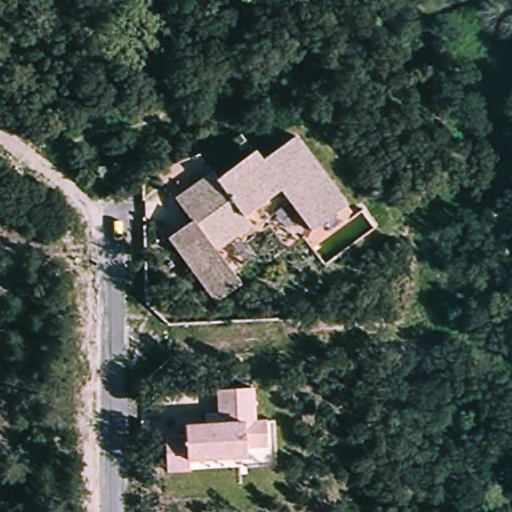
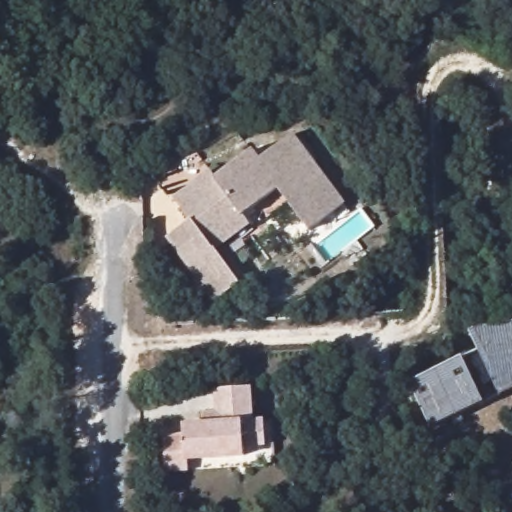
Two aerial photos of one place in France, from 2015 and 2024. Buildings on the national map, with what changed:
unchanged [(176,195),(216,170),(220,177),(259,152),(266,163),(302,140),(349,213),(311,237),(283,192),(245,216),(251,225),(214,249),(238,285),(211,302),(181,255),(167,234),(191,219),(176,195)]
new [(512,323),(512,391),(502,396),(485,404),(432,430),(409,384),(463,358),(479,351),(468,331),(512,323)]
unchanged [(255,418),(265,418),(267,446),(245,446),(244,458),(189,459),(189,470),(166,471),(165,433),(183,431),(184,422),(203,421),(203,412),(216,411),(215,388),(253,386),(255,418)]

